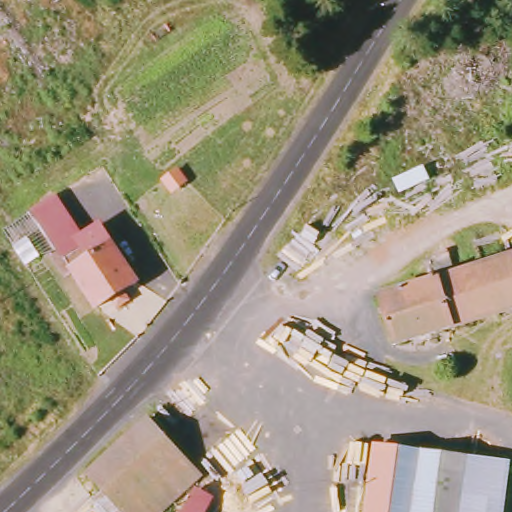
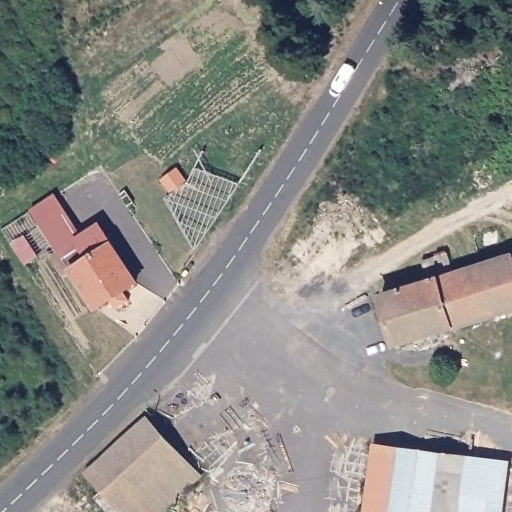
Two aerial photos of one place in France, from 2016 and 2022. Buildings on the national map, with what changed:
unchanged [(30,211),(55,193),(84,237),(59,252),(30,211)]
unchanged [(74,271),(65,275),(53,256),(100,228),(136,281),(95,308),(74,271)]
unchanged [(454,260),(460,280),(439,287),(454,331),(396,349),(382,302),(381,300),(391,297),(432,286),(429,275),(426,264),(452,255),(454,260)]
unchanged [(439,287),(460,280),(512,263),(512,312),(454,331),(439,287)]
unchanged [(202,473),(158,512),(129,512),(93,468),(149,418),(202,473)]
unchanged [(503,465),(499,507),(482,505),(481,512),(368,512),(378,448),(503,465)]

